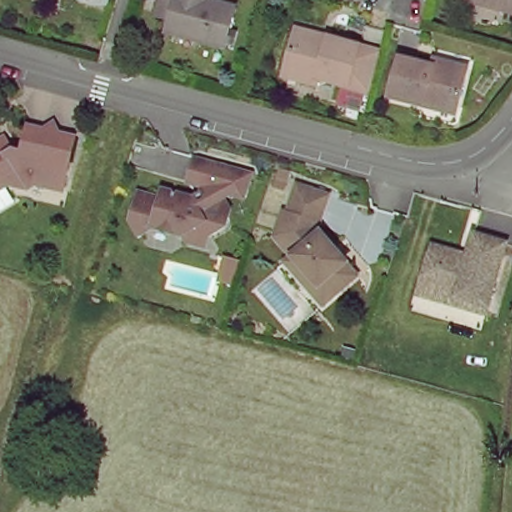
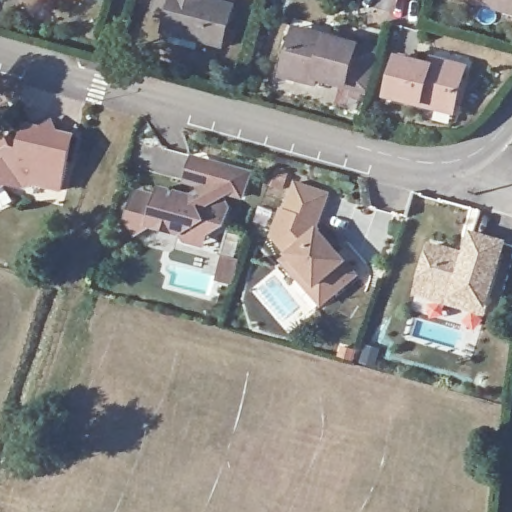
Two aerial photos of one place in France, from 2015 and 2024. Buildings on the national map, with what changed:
unchanged [(219,50),(160,36),(164,22),(150,18),(155,0),(203,0),(202,1),(229,8),(219,50)]
unchanged [(512,14),(464,0),(512,0),(512,14)]
unchanged [(351,82),(321,74),(319,81),(287,73),(296,33),(298,26),(330,34),(361,42),(351,82)]
unchanged [(420,106),(387,97),(397,57),(429,66),(431,59),(465,67),(456,106),(454,114),(420,106)]
unchanged [(61,188),(27,181),(26,186),(8,182),(0,187),(0,136),(3,134),(13,148),(22,150),(28,124),(43,128),(53,119),(58,131),(74,135),(61,188)]
unchanged [(187,239),(181,232),(152,224),(138,232),(130,218),(138,189),(160,195),(162,187),(191,195),(208,185),(188,179),(195,155),(216,161),(251,171),(244,195),(225,190),(223,195),(229,206),(224,223),(209,232),(208,231),(204,244),(187,239)]
unchanged [(300,277),(284,260),(290,253),(274,234),(281,208),(286,209),(294,182),(326,192),(315,226),(329,242),(337,251),(356,273),(329,297),(322,302),(300,277)]
unchanged [(420,285),(431,243),(454,250),(453,253),(466,257),(473,232),(505,241),(486,312),(467,307),(418,293),(420,285)]
unchanged [(240,259),(235,280),(220,276),(226,255),(240,259)]

